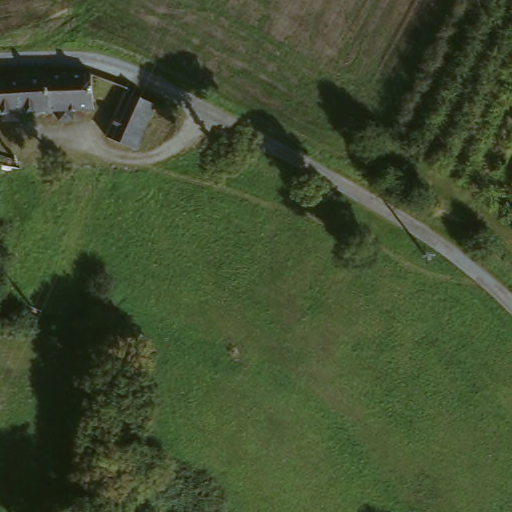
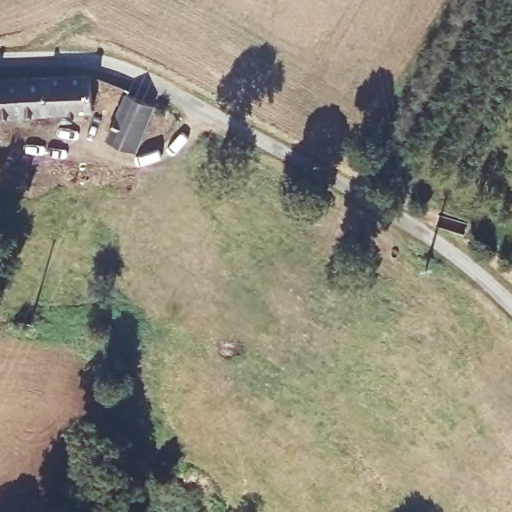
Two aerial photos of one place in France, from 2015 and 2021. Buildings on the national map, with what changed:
unchanged [(85,79),(88,113),(44,115),(40,82),(85,79)]
unchanged [(0,84),(40,82),(44,115),(0,117),(0,84)]
unchanged [(128,98),(130,99),(155,110),(136,154),(109,143),(128,98)]

